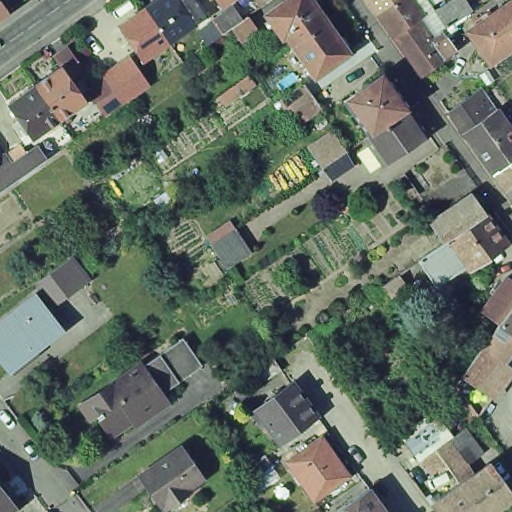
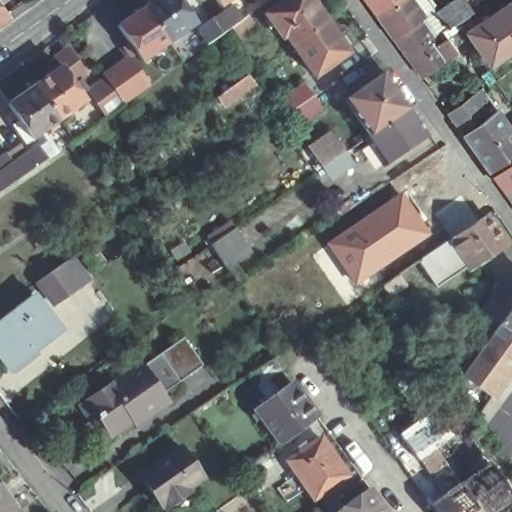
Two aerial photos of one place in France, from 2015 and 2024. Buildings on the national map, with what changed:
unchanged [(8,12),(0,18),(0,0),(8,12)]
unchanged [(160,0),(185,0),(201,23),(175,42),(150,7),(160,0)]
unchanged [(222,0),(235,0),(226,6),(222,0)]
unchanged [(275,18),(271,14),(291,0),(320,0),(318,3),(331,20),(297,44),(290,34),(287,37),(280,25),(273,29),(268,23),(275,18)]
unchanged [(397,0),(378,13),(368,0),(397,0)]
unchanged [(394,35),(378,13),(397,0),(414,0),(424,14),(417,19),(431,37),(442,29),(457,49),(422,74),(407,54),(394,35)]
unchanged [(454,0),(464,0),(471,10),(466,13),(447,26),(436,12),(454,0)]
unchanged [(467,31),(512,0),(512,50),(490,64),(467,31)]
unchanged [(147,61),(142,53),(136,44),(123,25),(150,7),(175,42),(147,61)]
unchanged [(218,21),(238,7),(247,19),(252,15),(253,16),(262,30),(246,41),(236,28),(236,27),(227,34),(212,44),(204,31),(218,21)]
unchanged [(343,37),(348,36),(353,43),(351,48),(353,52),(320,76),(297,44),(331,20),(343,37)]
unchanged [(86,94),(91,101),(65,120),(40,85),(67,66),(60,57),(72,48),(87,68),(91,75),(86,79),(93,89),(86,94)]
unchanged [(125,98),(108,75),(134,57),(150,80),(155,87),(129,105),(128,104),(111,115),(93,90),(110,78),(125,98)]
unchanged [(235,85),(235,86),(248,76),(255,85),(241,94),(225,105),(219,96),(234,85),(235,85)]
unchanged [(344,105),(384,77),(410,113),(402,117),(369,140),(344,105)]
unchanged [(297,126),(287,111),(291,108),(290,105),(285,97),(305,83),(313,95),(322,108),(297,126)]
unchanged [(19,127),(25,122),(13,104),(40,85),(65,120),(37,139),(33,133),(26,137),(19,127)]
unchanged [(450,113),(483,88),(497,108),(481,120),(481,119),(471,126),(472,127),(464,133),(450,113)]
unchanged [(464,133),(472,127),(471,126),(481,119),(481,120),(497,108),(512,130),(512,199),(505,188),(493,173),(464,133)]
unchanged [(429,140),(385,171),(365,143),(369,140),(402,117),(410,113),(410,112),(429,140)]
unchanged [(310,147),(334,131),(351,156),(327,172),(310,147)]
unchanged [(12,154),(13,156),(26,147),(33,155),(43,148),(51,159),(27,176),(3,192),(0,187),(0,178),(0,162),(12,154)]
new [(402,189),(431,233),(355,286),(325,242),(402,189)]
unchanged [(431,224),(473,196),(486,214),(448,239),(445,242),(431,224)]
unchanged [(486,214),(506,243),(469,268),(467,266),(448,239),(486,214)]
unchanged [(230,222),(248,247),(222,264),(206,239),(230,222)]
unchanged [(467,266),(436,287),(418,261),(443,243),(445,242),(448,239),(467,266)]
unchanged [(38,282),(50,273),(71,258),(88,280),(66,295),(55,303),(38,282)]
unchanged [(388,280),(397,274),(405,284),(389,294),(382,284),(388,280)]
unchanged [(487,348),(505,324),(505,323),(488,311),(512,278),(512,345),(503,358),(512,364),(512,377),(497,397),(468,375),(487,348)]
unchanged [(39,352),(15,371),(11,367),(0,352),(0,323),(36,295),(61,327),(35,348),(39,352)]
unchanged [(82,404),(93,397),(142,363),(143,365),(161,353),(185,336),(203,364),(180,380),(162,392),(168,401),(146,416),(143,412),(113,433),(100,416),(105,413),(102,410),(91,417),(82,404)]
unchanged [(273,357),(282,369),(257,386),(248,374),(273,357)]
unchanged [(253,414),(257,411),(256,410),(293,383),(318,417),(314,420),(282,444),(281,442),(261,416),(258,419),(253,414)]
unchanged [(431,498),(436,494),(441,501),(465,483),(460,477),(450,463),(438,472),(428,457),(425,460),(405,434),(438,410),(458,436),(470,427),(482,447),(465,461),(475,476),(495,462),(512,486),(512,502),(498,512),(441,512),(436,504),(431,498)]
unchanged [(348,475),(315,498),(288,461),(301,452),(297,447),(304,442),(307,447),(321,437),(348,475)]
unchanged [(170,505),(167,506),(146,475),(187,446),(208,478),(184,495),(185,497),(171,507),(170,505)]
unchanged [(265,454),(272,464),(251,479),(243,468),(265,454)]
unchanged [(15,506),(7,512),(0,512),(0,486),(15,506)]
unchanged [(370,487),(388,512),(336,512),(370,487)]

